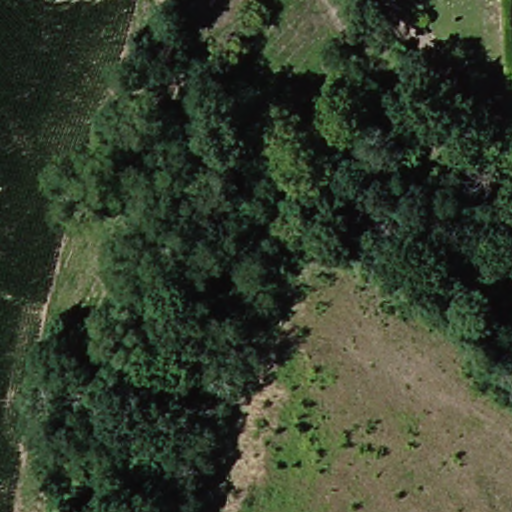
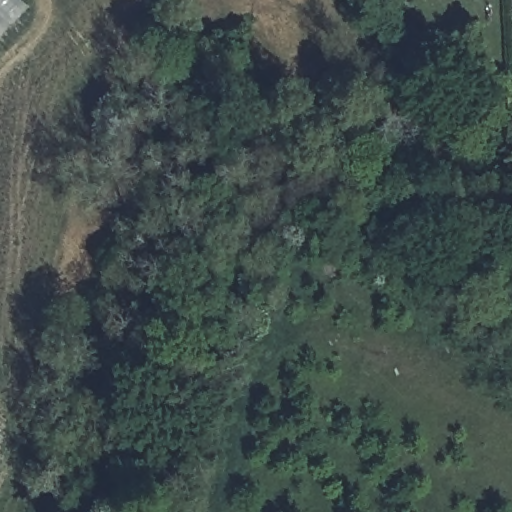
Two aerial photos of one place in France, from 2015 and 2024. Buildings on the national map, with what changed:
new [(0,36),(0,0),(17,0),(27,9),(0,36)]

